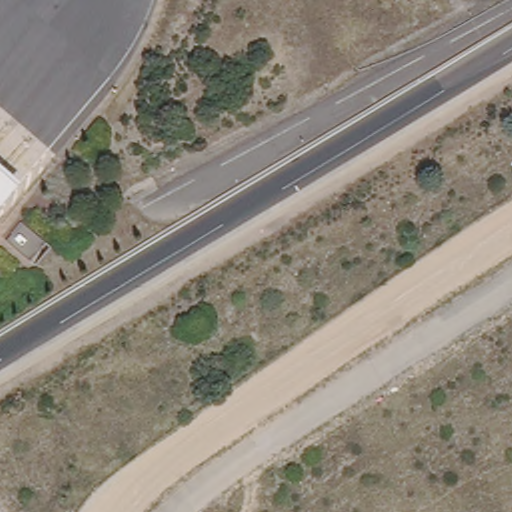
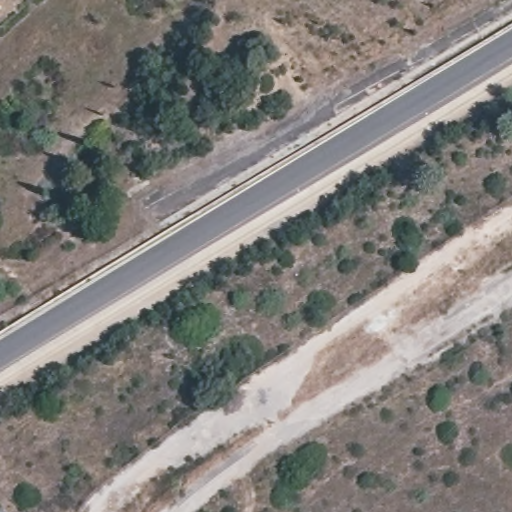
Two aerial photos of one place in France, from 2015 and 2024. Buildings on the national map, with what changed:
demolished [(26,182),(0,213),(0,159),(26,182)]

